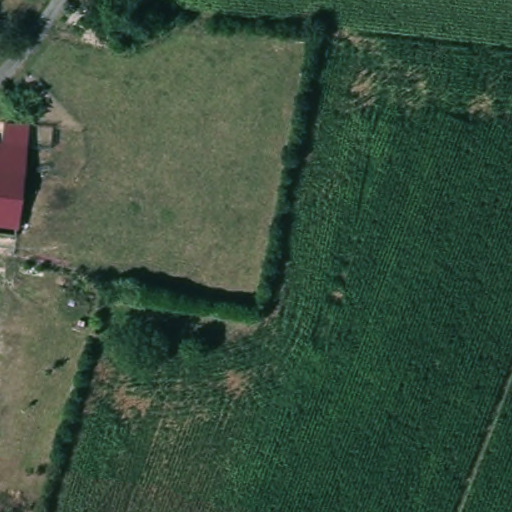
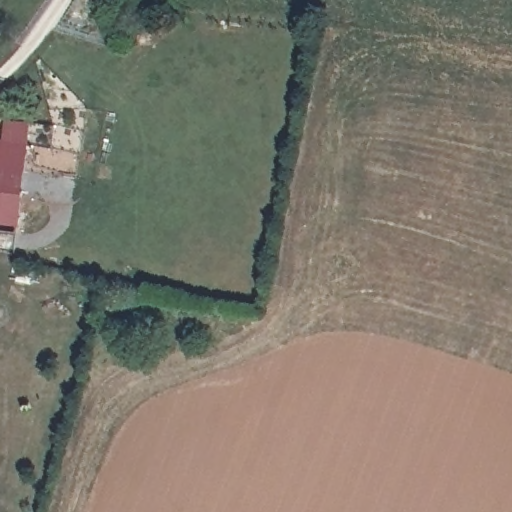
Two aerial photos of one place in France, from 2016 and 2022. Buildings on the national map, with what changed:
unchanged [(8,227),(0,226),(0,123),(25,128),(8,227)]

